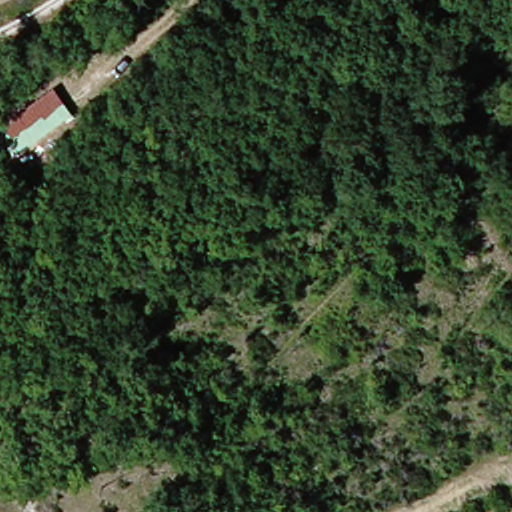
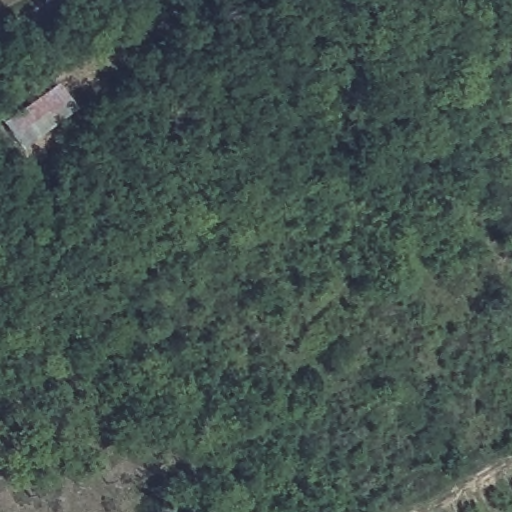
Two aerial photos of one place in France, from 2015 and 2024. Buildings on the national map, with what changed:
unchanged [(63,86),(80,112),(28,148),(12,124),(63,86)]

